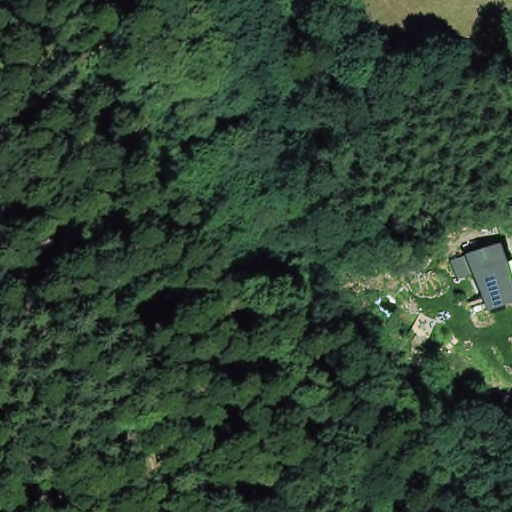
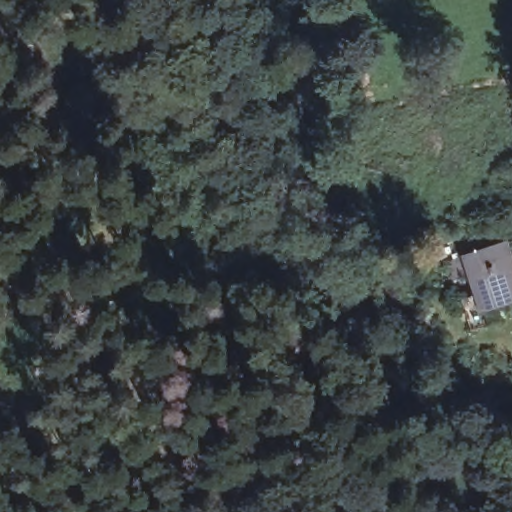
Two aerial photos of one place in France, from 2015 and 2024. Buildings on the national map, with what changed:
unchanged [(512,303),(481,312),(458,251),(506,235),(512,252),(512,303)]

